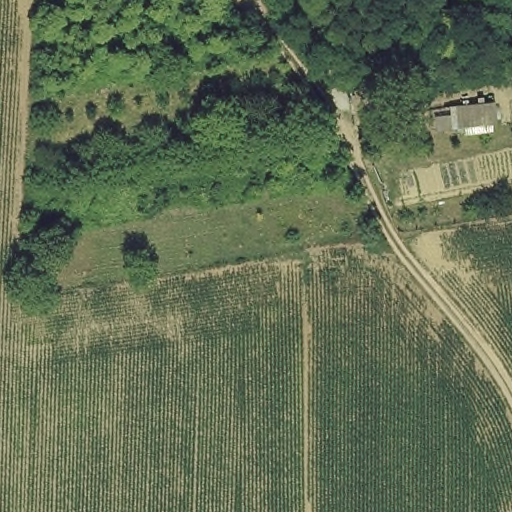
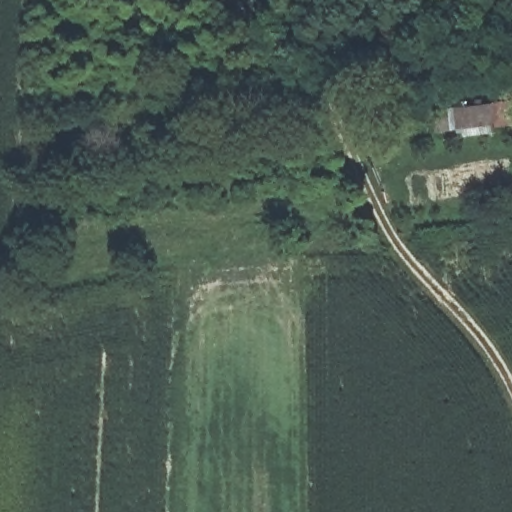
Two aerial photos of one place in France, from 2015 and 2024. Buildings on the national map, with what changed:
unchanged [(376,63),(374,20),(401,19),(401,58),(376,63)]
unchanged [(497,128),(451,133),(449,106),(495,101),(497,128)]

